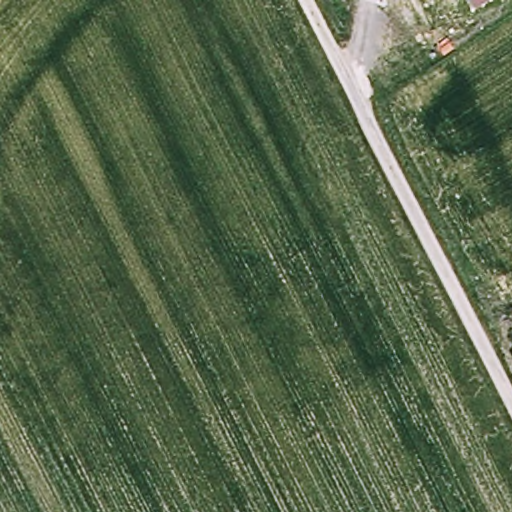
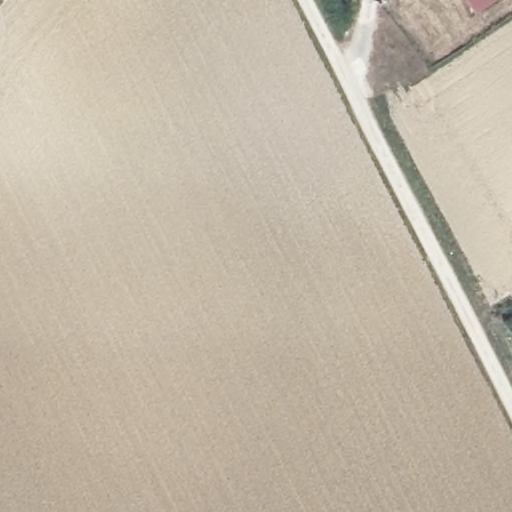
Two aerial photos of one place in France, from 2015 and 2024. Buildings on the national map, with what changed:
unchanged [(477,0),(469,5),(466,0),(477,0)]

